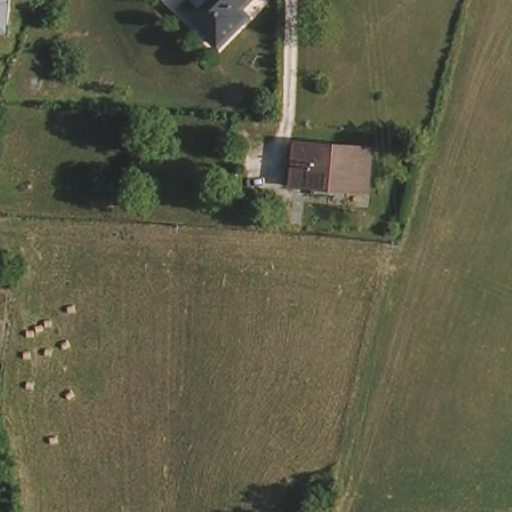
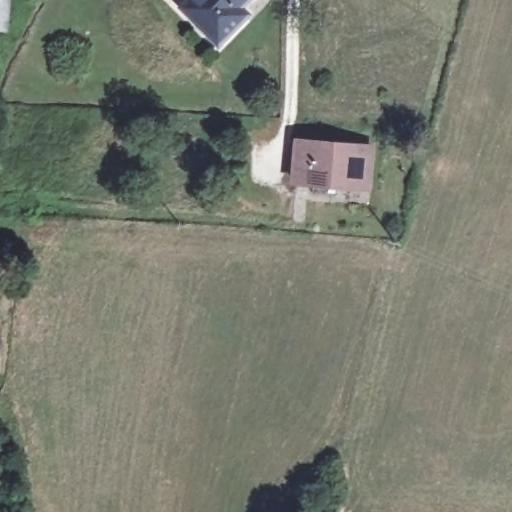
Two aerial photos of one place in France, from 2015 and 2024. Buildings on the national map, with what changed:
unchanged [(0,29),(0,0),(10,0),(6,30),(0,29)]
unchanged [(191,20),(212,0),(262,0),(262,3),(245,19),(253,28),(238,43),(225,56),(217,47),(191,20)]
unchanged [(297,184),(302,146),(372,152),(368,190),(297,184)]

